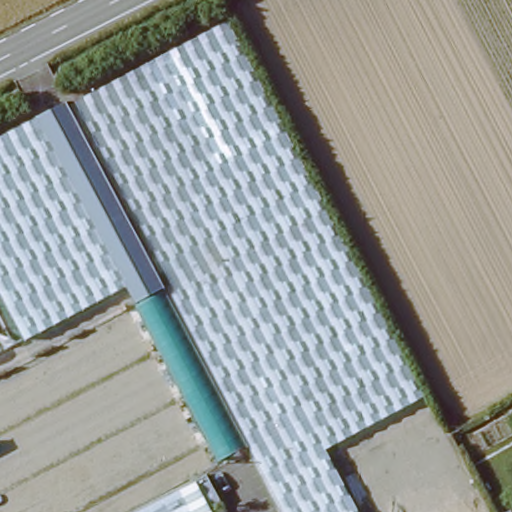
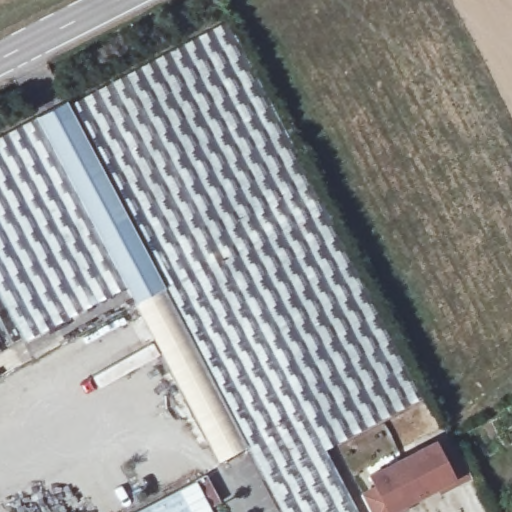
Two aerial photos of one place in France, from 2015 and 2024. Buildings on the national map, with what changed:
unchanged [(251,447),(219,464),(128,287),(25,339),(0,292),(0,137),(233,19),(427,396),(325,449),(358,512),(284,512),(251,447)]
unchanged [(2,348),(0,348),(0,343),(2,348)]
new [(370,486),(366,474),(435,439),(440,449),(455,446),(470,476),(442,494),(439,489),(403,507),(407,512),(406,512),(367,512),(359,494),(370,486)]
unchanged [(207,474),(221,504),(211,510),(212,512),(135,512),(207,474)]

